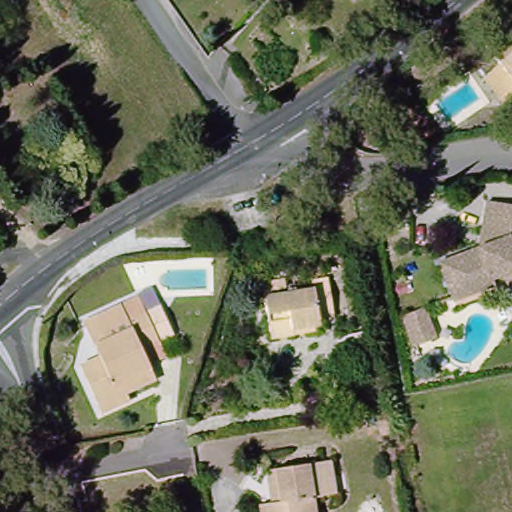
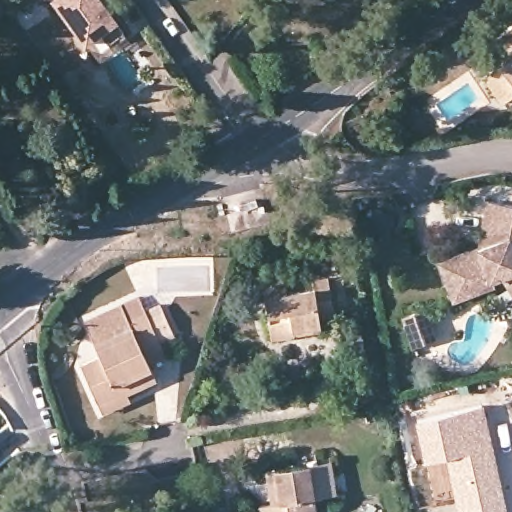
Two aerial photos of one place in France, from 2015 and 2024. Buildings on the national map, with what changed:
new [(127,32),(112,43),(103,33),(87,44),(52,1),(46,6),(42,0),(103,0),(127,32)]
unchanged [(484,77),(500,64),(485,44),(512,24),(512,94),(503,102),(484,77)]
unchanged [(490,282),(493,288),(455,307),(437,271),(476,252),(477,237),(480,205),(512,208),(512,240),(505,239),(512,252),(512,288),(503,271),(490,282)]
unchanged [(288,336),(269,340),(260,282),(281,279),(284,292),(310,288),(309,280),(323,277),(329,318),(315,321),(316,331),(288,336)]
unchanged [(100,406),(82,364),(102,355),(87,320),(139,297),(146,311),(160,305),(163,311),(175,336),(160,343),(167,357),(150,364),(157,381),(129,394),(132,401),(103,414),(100,406)]
unchanged [(423,304),(436,334),(410,345),(397,316),(423,304)]
new [(457,512),(453,498),(434,503),(424,463),(414,420),(483,406),(507,512),(457,512)]
unchanged [(315,494),(319,512),(265,512),(262,500),(273,498),(269,465),(276,464),(320,458),(325,492),(315,494)]

